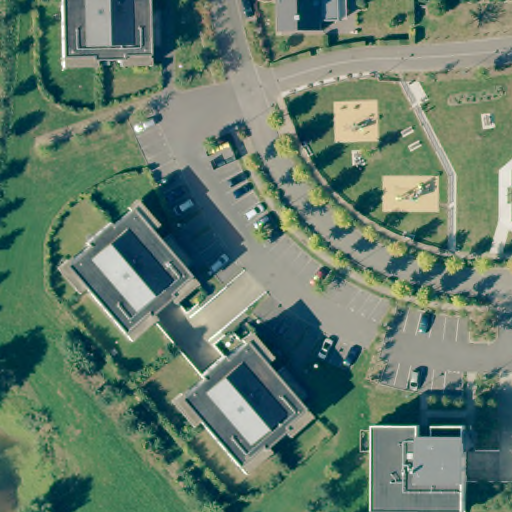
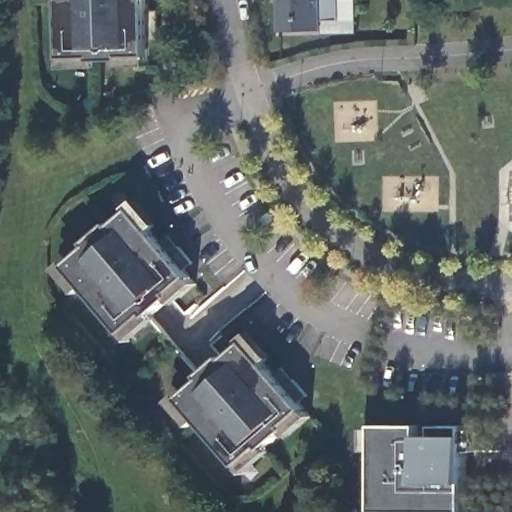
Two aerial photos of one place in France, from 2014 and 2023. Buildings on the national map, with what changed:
unchanged [(161,48),(150,48),(150,57),(123,57),(123,61),(92,62),(92,57),(62,59),(61,0),(149,0),(149,11),(160,11),(161,27),(161,48)]
unchanged [(323,22),(323,31),(281,32),(281,4),(287,4),(286,0),(340,0),(341,22),(323,22)]
unchanged [(186,270),(191,277),(170,294),(173,297),(150,317),(147,314),(124,333),(66,266),(88,246),(86,243),(110,223),(112,226),(133,209),(161,242),(170,235),(180,247),(194,263),(186,270)]
unchanged [(284,367),(294,380),(308,396),(300,402),(305,409),(284,427),(287,430),(263,450),(261,447),(238,467),(180,398),(202,379),(200,376),(223,356),(226,359),(246,341),(275,375),(284,367)]
unchanged [(420,426),(421,426),(421,437),(435,437),(435,426),(466,426),(466,483),(466,512),(375,511),(374,511),(375,481),(375,480),(375,456),(375,426),(420,426)]

